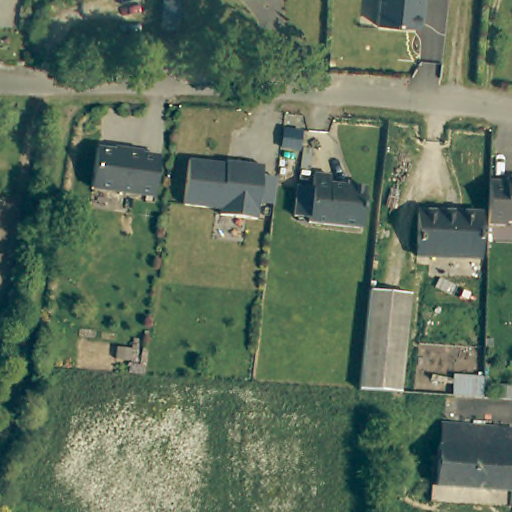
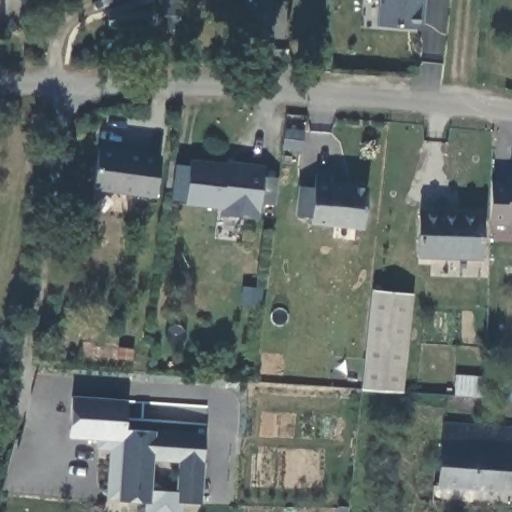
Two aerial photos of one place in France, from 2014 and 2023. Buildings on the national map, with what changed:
unchanged [(161,16),(162,0),(177,0),(176,16),(161,16)]
unchanged [(417,3),(422,9),(421,20),(416,24),(376,21),(378,0),(418,0),(417,3)]
unchanged [(155,199),(92,193),(95,153),(122,156),(123,153),(142,154),(142,158),(159,160),(155,199)]
unchanged [(228,220),(221,220),(222,212),(185,209),(189,164),(234,169),(245,170),(245,167),(265,169),(263,180),(260,208),(258,223),(228,220)]
unchanged [(365,230),(311,227),(312,220),(297,219),(300,189),(316,190),(316,177),(334,178),(333,188),(368,190),(365,230)]
unchanged [(510,186),(510,181),(512,181),(512,225),(510,225),(510,229),(490,228),(491,209),(492,184),(510,186)]
unchanged [(483,211),(481,255),(416,252),(419,207),(483,211)]
unchanged [(381,297),(408,299),(411,300),(407,344),(402,400),(371,397),(360,396),(369,295),(381,297)]
new [(456,376),(485,379),(485,401),(455,399),(456,376)]
new [(180,504),(180,512),(144,512),(145,502),(116,500),(105,500),(108,451),(95,450),(95,440),(69,438),(71,397),(126,401),(125,429),(156,431),(205,434),(200,504),(180,504)]
unchanged [(440,446),(441,427),(511,431),(508,489),(433,485),(435,446),(440,446)]

